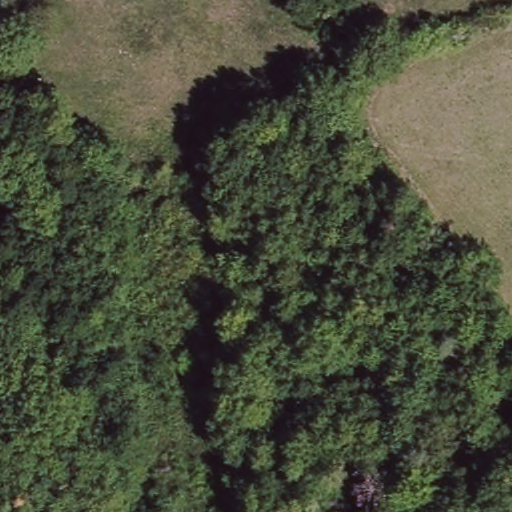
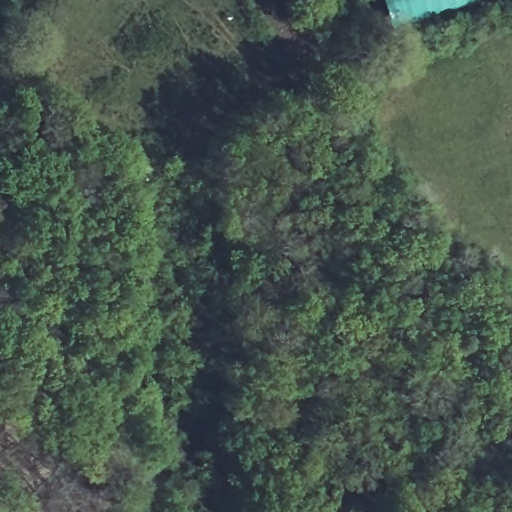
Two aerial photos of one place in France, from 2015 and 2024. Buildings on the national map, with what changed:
new [(391,28),(380,0),(472,0),(391,28)]

